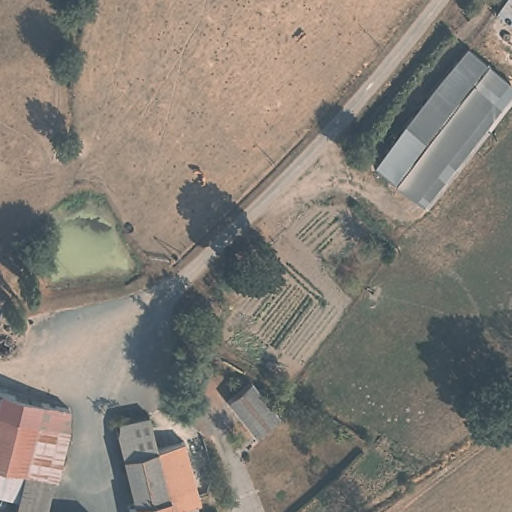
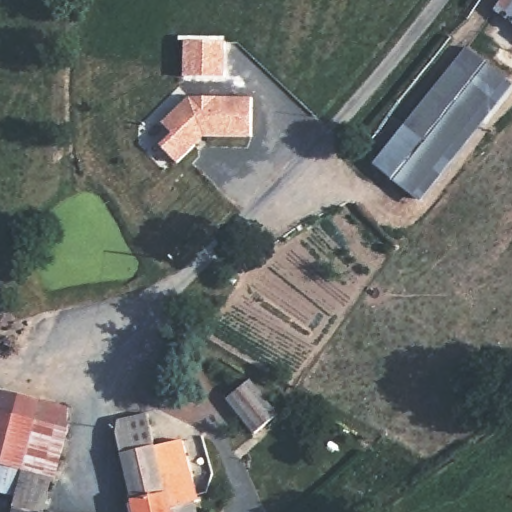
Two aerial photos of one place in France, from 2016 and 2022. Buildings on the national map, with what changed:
unchanged [(501,0),(512,0),(512,23),(494,10),(501,0)]
new [(186,41),(225,41),(224,77),(184,77),(186,41)]
unchanged [(510,83),(415,200),(376,168),(471,51),(510,83)]
new [(187,96),(250,98),(250,136),(205,135),(177,163),(161,147),(173,134),(161,124),(187,96)]
unchanged [(251,381),(277,415),(254,432),(228,399),(251,381)]
unchanged [(0,491),(0,390),(0,388),(66,405),(66,430),(55,478),(49,478),(44,511),(50,512),(13,512),(16,496),(0,491)]
unchanged [(118,420),(148,413),(155,446),(123,453),(118,420)]
unchanged [(134,502),(123,453),(155,446),(166,443),(178,440),(185,467),(196,512),(129,512),(127,504),(134,502)]

